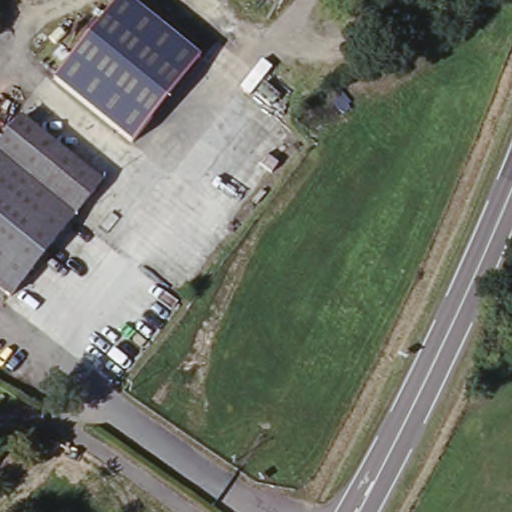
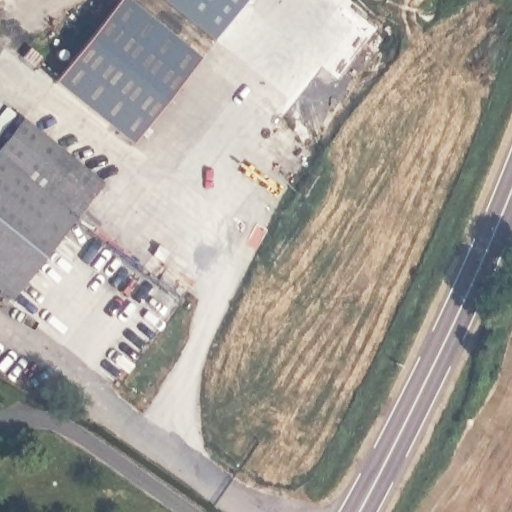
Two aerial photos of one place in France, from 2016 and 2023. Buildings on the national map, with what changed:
unchanged [(122,0),(142,0),(207,54),(137,139),(60,75),(122,0)]
new [(217,48),(162,0),(255,0),(217,48)]
unchanged [(101,187),(9,299),(0,292),(0,148),(22,121),(101,187)]

